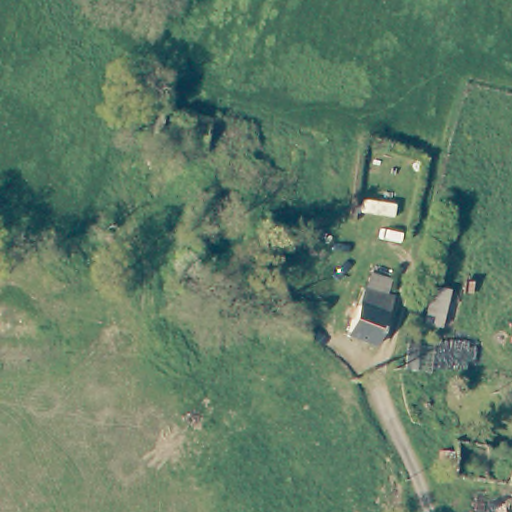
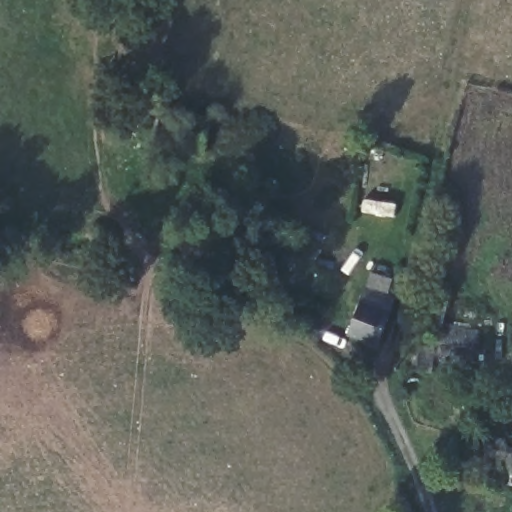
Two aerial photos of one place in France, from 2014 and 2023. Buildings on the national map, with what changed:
unchanged [(377,350),(349,340),(347,340),(356,317),(342,311),(351,287),(366,293),(395,304),(377,350)]
unchanged [(512,449),(512,486),(444,475),(450,439),(512,449)]

